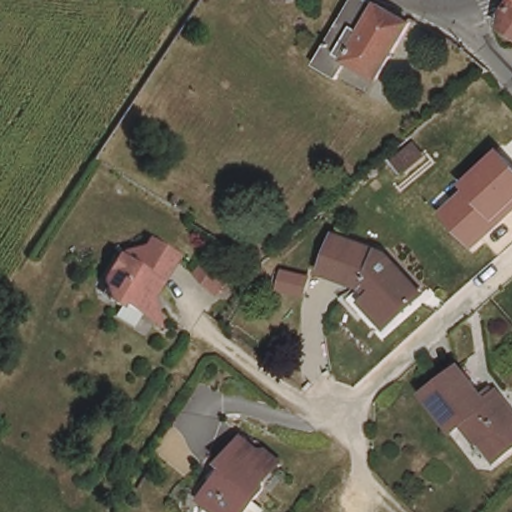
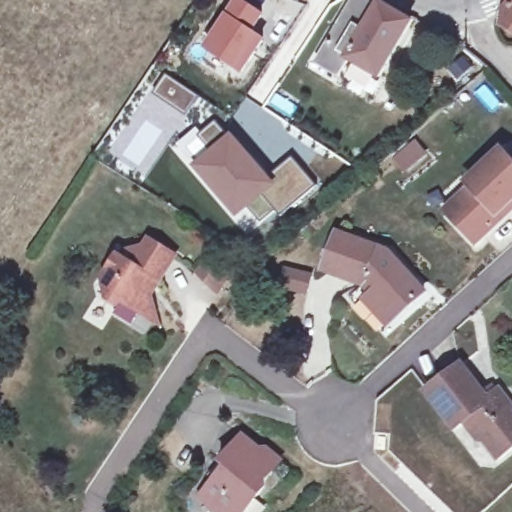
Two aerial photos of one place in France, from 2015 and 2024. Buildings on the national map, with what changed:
new [(206,50),(228,15),(239,0),(243,0),(267,17),(256,34),(267,41),(245,77),(206,50)]
unchanged [(338,81),(316,67),(358,0),(378,0),(384,2),(415,22),(380,78),(351,62),(338,81)]
unchanged [(512,31),(505,26),(512,11),(512,31)]
new [(250,209),(240,218),(180,148),(199,130),(203,134),(217,122),(234,141),(266,180),(293,159),(320,187),(284,216),(279,211),(264,224),(250,209)]
unchanged [(440,211),(463,186),(461,184),(500,147),(512,159),(512,214),(475,250),(440,211)]
unchanged [(406,151),(418,165),(400,180),(389,166),(406,151)]
unchanged [(329,271),(342,232),(392,252),(428,290),(398,318),(391,325),(358,292),(365,285),(329,271)]
unchanged [(140,312),(122,300),(118,305),(106,297),(101,277),(117,252),(123,256),(130,246),(143,247),(148,239),(170,254),(177,258),(160,283),(153,278),(145,290),(152,295),(159,324),(140,312)]
new [(208,255),(230,269),(217,290),(199,270),(208,255)]
unchanged [(467,417),(460,421),(431,386),(462,362),(489,394),(500,386),(512,402),(512,445),(500,455),(467,417)]
unchanged [(236,503),(228,512),(225,512),(202,492),(215,476),(210,471),(237,440),(274,469),(263,480),(265,487),(257,496),(245,510),(236,503)]

